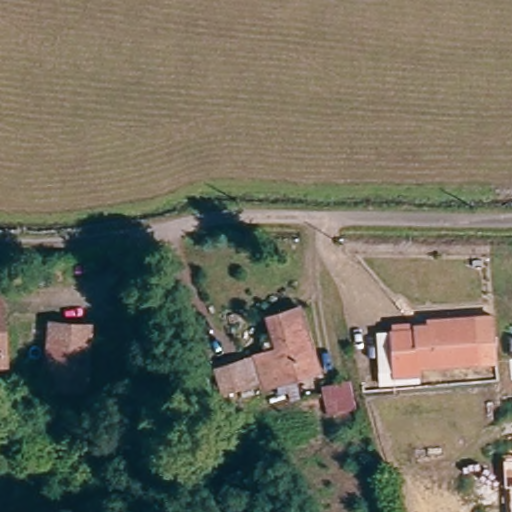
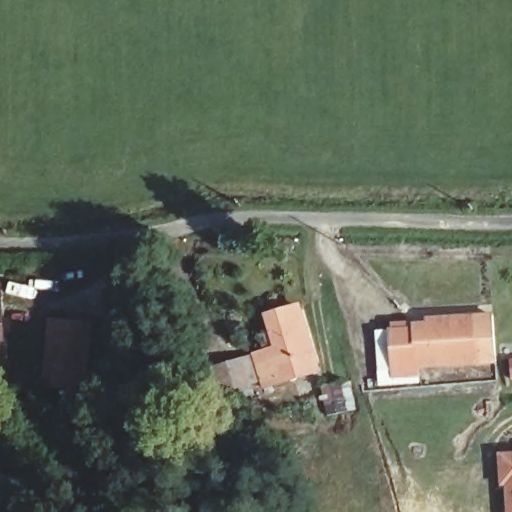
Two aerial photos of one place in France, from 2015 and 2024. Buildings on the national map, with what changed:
unchanged [(274,350),(268,335),(281,330),(275,312),(300,302),(325,367),(271,387),(264,368),(260,356),(274,350)]
unchanged [(0,366),(0,305),(4,366),(0,366)]
unchanged [(376,388),(371,337),(386,335),(423,331),(422,324),(488,316),(493,359),(417,366),(418,375),(391,378),(391,386),(376,388)]
unchanged [(40,370),(45,328),(93,334),(88,375),(63,372),(40,370)]
unchanged [(511,352),(512,352),(512,372),(510,372),(511,352)]
unchanged [(225,393),(217,370),(240,363),(253,358),(257,370),(260,380),(225,393)]
unchanged [(317,401),(341,393),(352,422),(328,430),(317,401)]
unchanged [(141,436),(152,460),(129,470),(119,447),(141,436)]
new [(512,453),(512,512),(507,512),(505,488),(500,488),(500,454),(512,453)]

